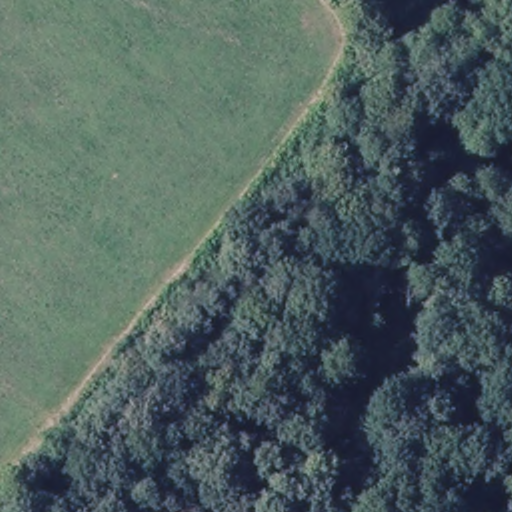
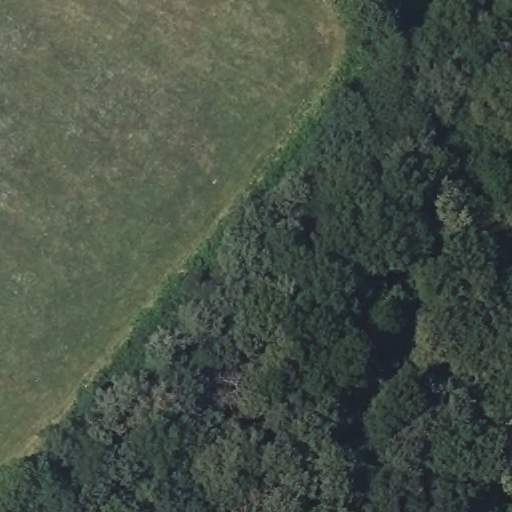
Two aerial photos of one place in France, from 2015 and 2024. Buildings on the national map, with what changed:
[]

